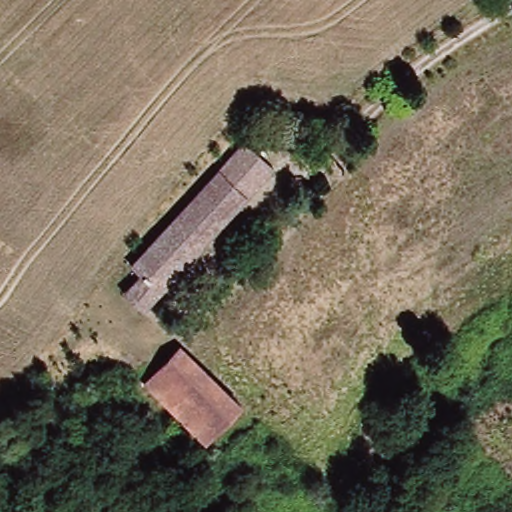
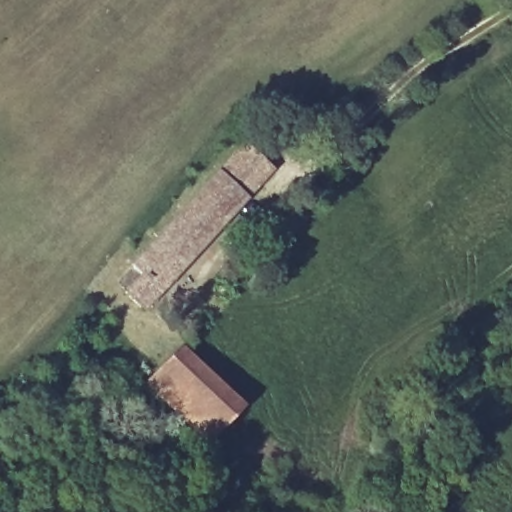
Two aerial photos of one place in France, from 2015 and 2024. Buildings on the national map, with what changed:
unchanged [(264,122),(275,134),(261,154),(275,169),(145,315),(130,300),(125,294),(140,276),(132,269),(264,122)]
unchanged [(182,347),(249,408),(217,443),(147,384),(164,368),(182,347)]

